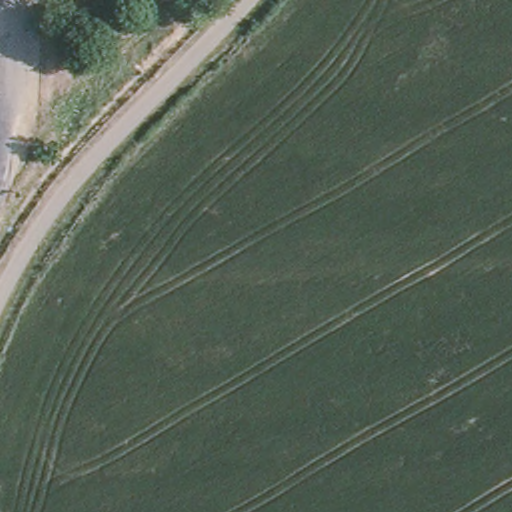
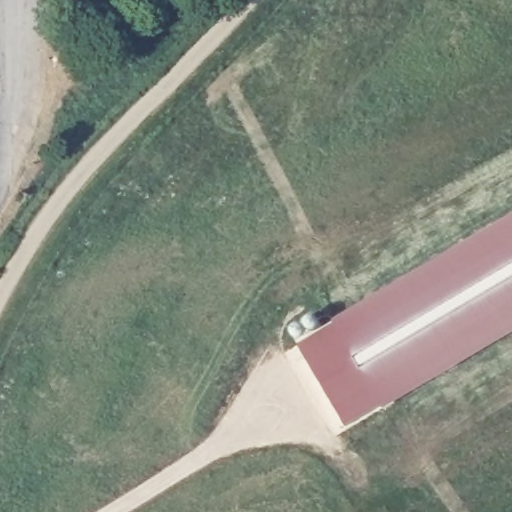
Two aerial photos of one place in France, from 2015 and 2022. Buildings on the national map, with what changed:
new [(382,404),(344,426),(297,344),(332,324),(329,319),(512,213),(512,332),(384,408),(382,404)]

